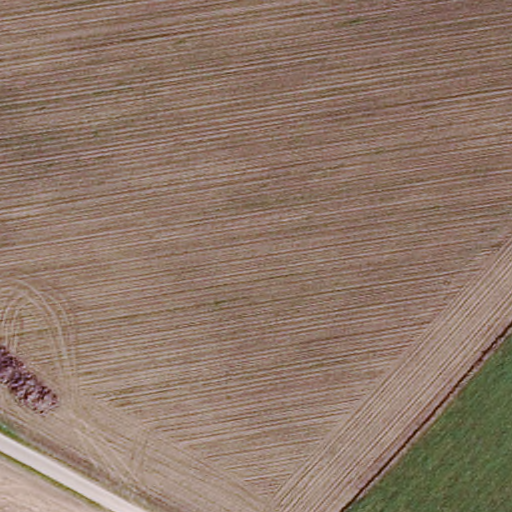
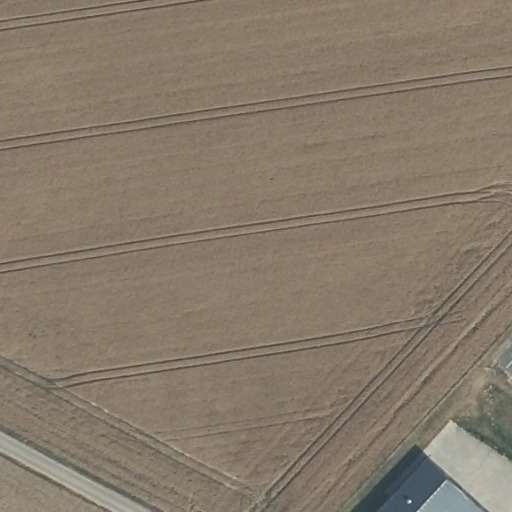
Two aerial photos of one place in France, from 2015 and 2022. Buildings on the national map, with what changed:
new [(490,512),(371,512),(426,453),(490,512)]

